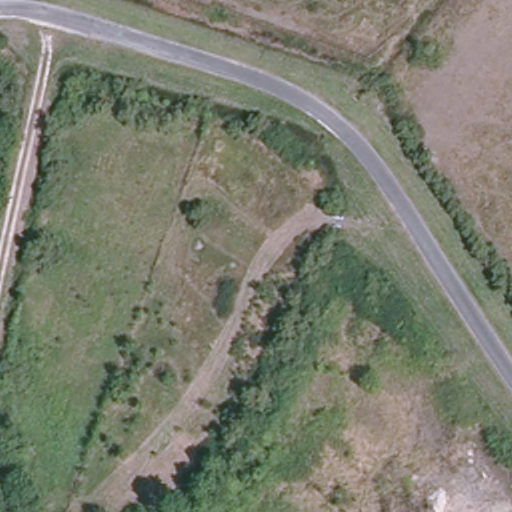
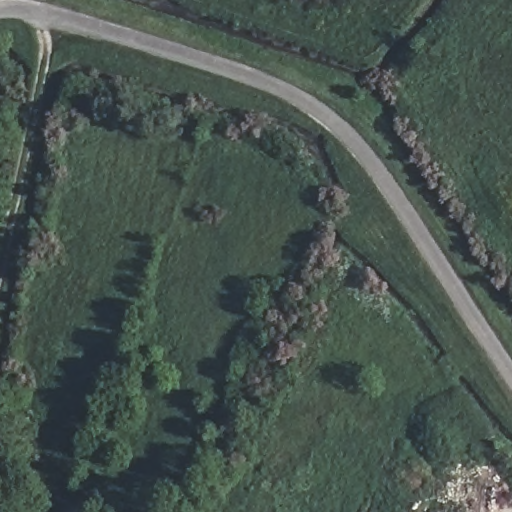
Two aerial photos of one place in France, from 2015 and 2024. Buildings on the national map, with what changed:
unchanged [(432,69),(414,79),(406,64),(425,55),(432,69)]

